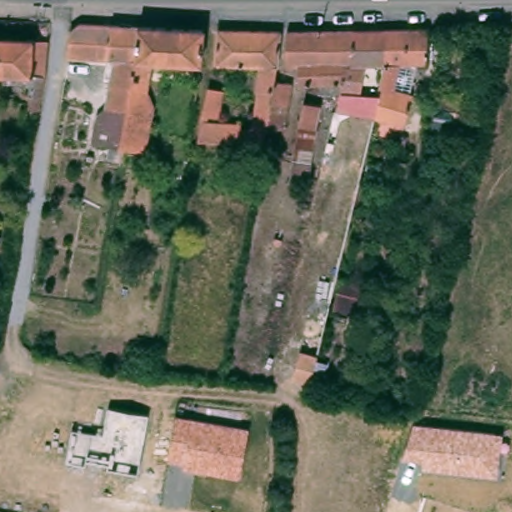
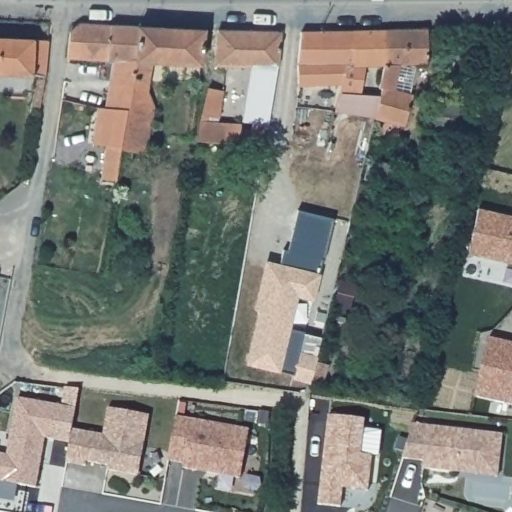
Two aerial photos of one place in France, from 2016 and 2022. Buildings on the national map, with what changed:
unchanged [(78,25),(134,27),(116,152),(89,146),(95,120),(104,109),(111,62),(110,60),(65,59),(68,32),(78,25)]
unchanged [(201,30),(197,65),(149,62),(140,126),(144,130),(141,155),(116,152),(134,27),(201,30)]
unchanged [(383,30),(382,64),(382,65),(382,67),(365,68),(365,93),(357,94),(355,98),(366,101),(363,115),(351,112),(350,115),(335,113),(340,93),(342,85),(346,67),(351,67),(351,65),(350,31),(383,30)]
unchanged [(425,30),(425,66),(400,66),(393,92),(412,96),(405,126),(375,119),(381,90),(378,89),(382,67),(382,65),(382,64),(383,30),(425,30)]
unchanged [(281,33),(281,35),(275,67),(272,77),(271,80),(268,97),(268,101),(267,105),(263,130),(261,145),(237,145),(215,145),(195,144),(195,124),(205,92),(218,92),(216,119),(205,118),(205,124),(216,124),(216,126),(250,127),(256,90),(254,90),(256,66),(214,65),(215,31),(281,33)]
unchanged [(350,31),(351,65),(351,67),(346,67),(342,85),(320,85),(318,32),(350,31)]
unchanged [(318,32),(320,85),(302,85),(301,92),(294,82),(293,65),(282,66),(286,34),(318,32)]
unchanged [(44,41),(41,75),(41,76),(35,115),(26,113),(31,87),(23,86),(25,76),(0,75),(0,40),(44,41)]
demolished [(316,105),(312,128),(295,125),(299,102),(316,105)]
demolished [(333,140),(331,148),(325,146),(326,138),(333,140)]
demolished [(315,194),(313,203),(301,200),(303,191),(315,194)]
new [(246,363),(258,310),(254,307),(265,260),(280,262),(283,249),(288,250),(297,211),(333,219),(317,272),(320,273),(314,299),(298,295),(290,328),(303,332),(300,348),(295,372),(246,363)]
unchanged [(363,282),(355,314),(331,308),(338,277),(363,282)]
unchanged [(318,353),(311,380),(295,377),(300,348),(318,353)]
new [(44,438),(36,487),(0,481),(0,450),(7,451),(17,396),(75,407),(71,429),(70,441),(44,438)]
unchanged [(71,429),(104,434),(108,407),(149,414),(139,473),(66,460),(71,429)]
unchanged [(177,416),(250,430),(240,479),(184,469),(185,462),(168,460),(177,416)]
new [(365,417),(363,428),(381,430),(375,482),(367,482),(367,489),(342,486),(341,505),(318,504),(328,417),(365,417)]
unchanged [(413,425),(502,435),(498,475),(423,468),(424,460),(401,457),(413,425)]

